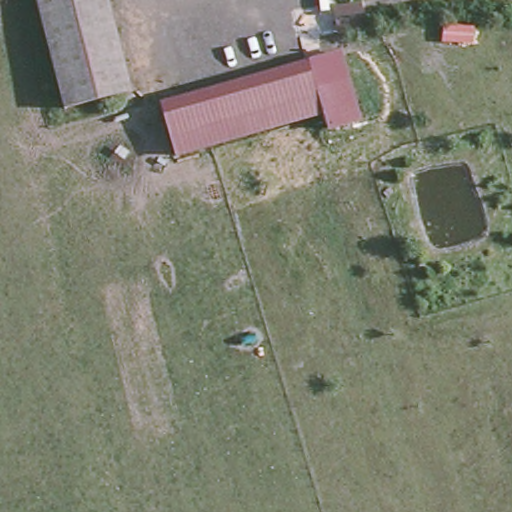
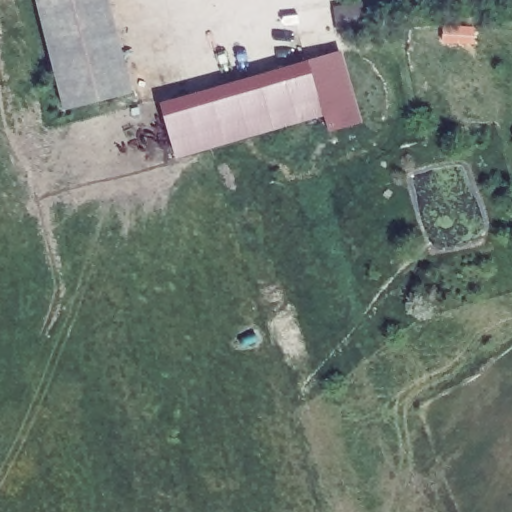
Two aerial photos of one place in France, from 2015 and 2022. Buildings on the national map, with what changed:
unchanged [(40,16),(35,0),(106,0),(127,91),(62,107),(40,16)]
unchanged [(159,103),(341,51),(361,124),(327,134),(323,115),(175,159),(159,103)]

